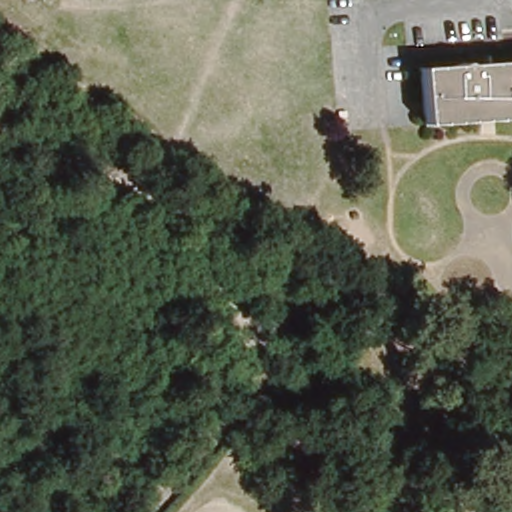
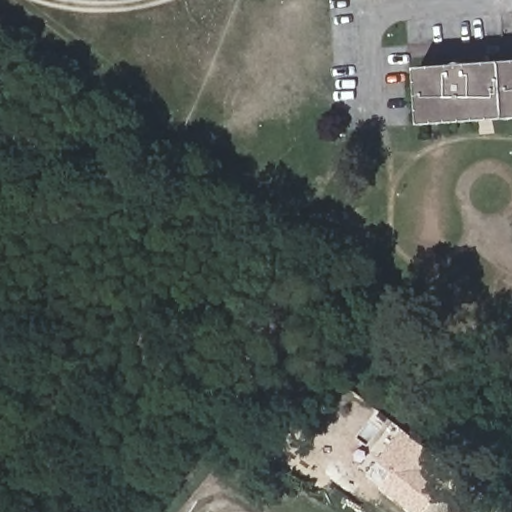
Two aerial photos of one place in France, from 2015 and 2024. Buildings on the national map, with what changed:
unchanged [(512,121),(424,128),(420,67),(512,61),(512,121)]
new [(438,457),(426,472),(440,484),(421,512),(412,512),(382,489),(394,475),(377,462),(402,429),(438,457)]

